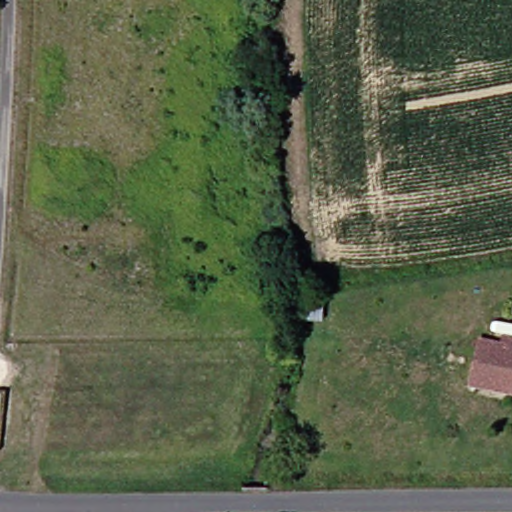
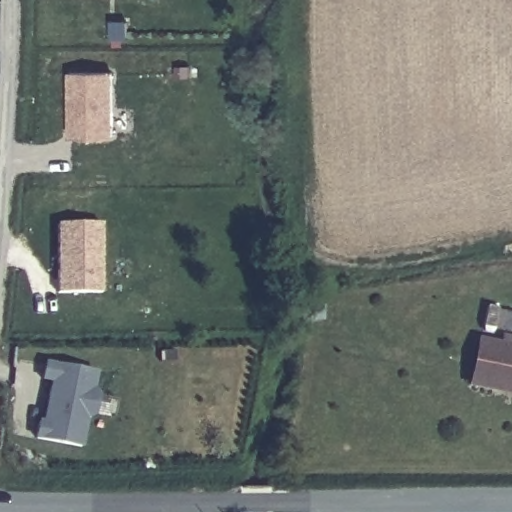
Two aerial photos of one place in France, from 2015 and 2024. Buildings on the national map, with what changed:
new [(70,79),(110,80),(108,139),(68,138),(70,79)]
new [(58,224),(101,224),(101,293),(58,293),(58,224)]
unchanged [(499,390),(465,385),(474,343),(494,346),(495,337),(507,339),(506,348),(512,348),(512,393),(499,390)]
new [(95,372),(78,447),(35,438),(39,417),(44,417),(52,383),(41,381),(46,361),(95,372)]

